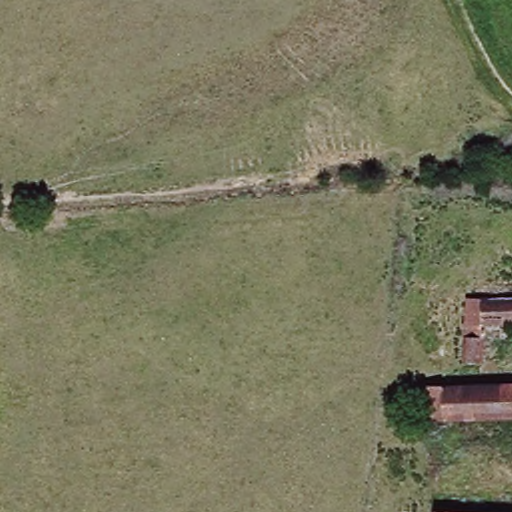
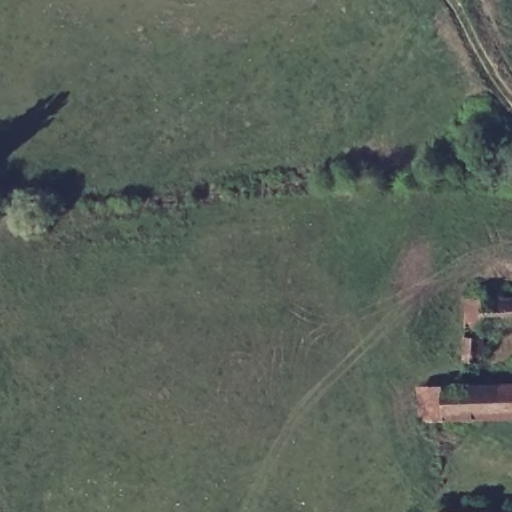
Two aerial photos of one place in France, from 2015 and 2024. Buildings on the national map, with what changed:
unchanged [(512,303),(512,328),(481,324),(478,362),(455,362),(457,343),(462,338),(463,322),(470,322),(471,300),(512,303)]
unchanged [(512,390),(512,425),(443,420),(418,419),(420,386),(445,387),(512,390)]

